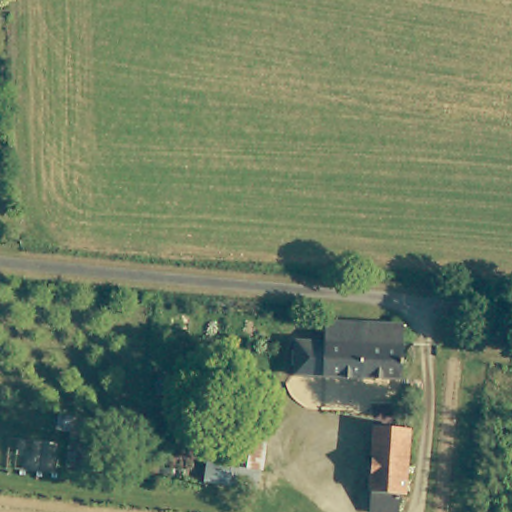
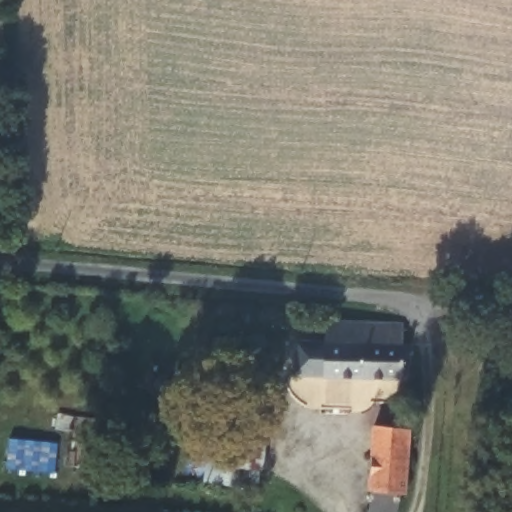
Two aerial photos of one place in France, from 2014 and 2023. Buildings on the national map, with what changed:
unchanged [(322,340),(323,320),(405,323),(405,372),(322,370),(292,369),(292,339),(322,340)]
unchanged [(171,378),(174,382),(175,386),(174,390),(172,394),(170,397),(165,398),(161,399),(157,398),(154,396),(151,393),(150,390),(150,386),(150,383),(151,379),(154,376),(157,375),(161,374),(165,374),(169,376),(171,378)]
unchanged [(235,411),(266,414),(260,468),(230,465),(235,411)]
unchanged [(373,482),(370,481),(377,415),(415,418),(410,486),(405,485),(401,502),(371,499),(373,482)]

